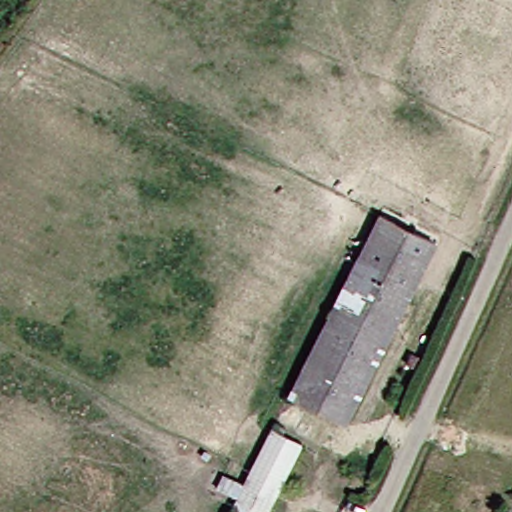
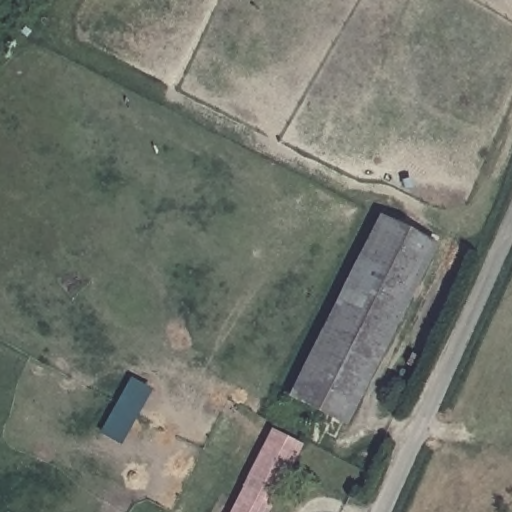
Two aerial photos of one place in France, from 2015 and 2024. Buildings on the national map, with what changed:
unchanged [(330,422),(274,394),(364,215),(420,243),(330,422)]
new [(130,377),(151,388),(121,441),(99,431),(130,377)]
unchanged [(275,424),(294,434),(255,512),(219,512),(270,411),(279,416),(275,424)]
unchanged [(326,423),(320,437),(310,431),(316,418),(326,423)]

